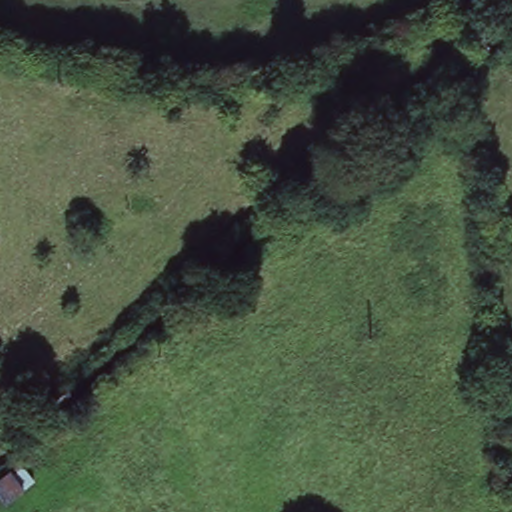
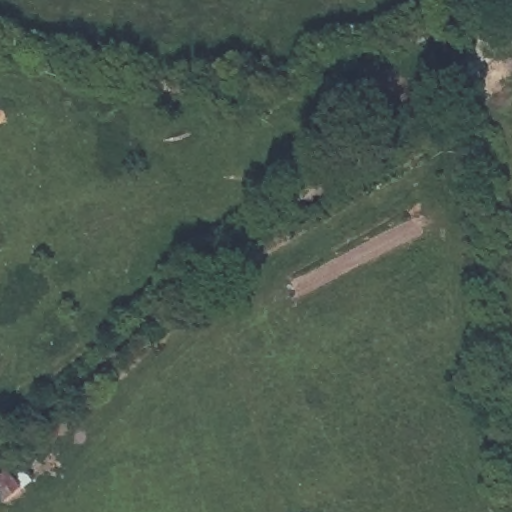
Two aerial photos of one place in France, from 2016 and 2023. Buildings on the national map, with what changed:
unchanged [(24,484),(0,503),(0,474),(10,466),(24,484)]

